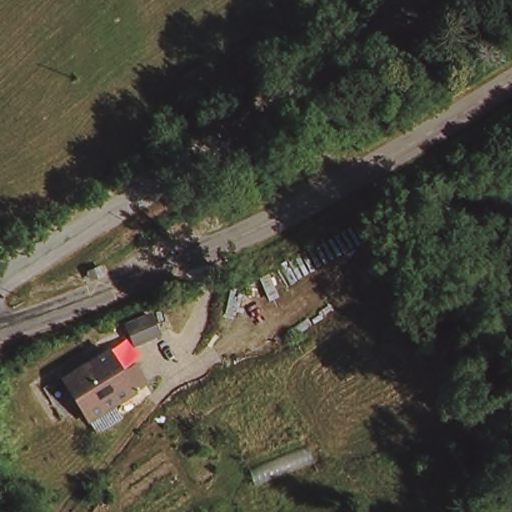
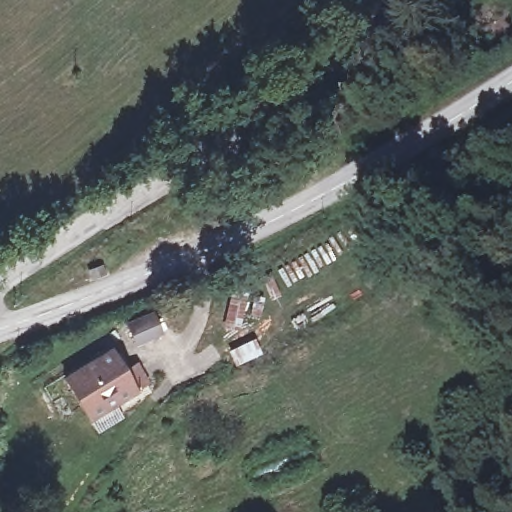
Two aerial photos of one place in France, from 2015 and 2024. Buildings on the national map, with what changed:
unchanged [(125,327),(146,313),(158,330),(138,345),(125,327)]
unchanged [(97,427),(87,413),(58,373),(100,343),(116,366),(128,357),(140,374),(128,382),(110,396),(120,410),(97,427)]

